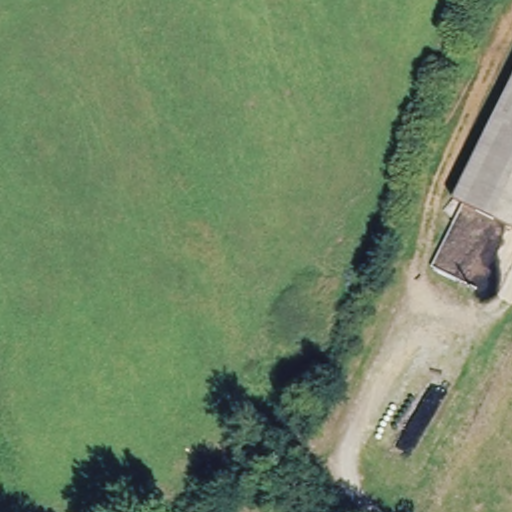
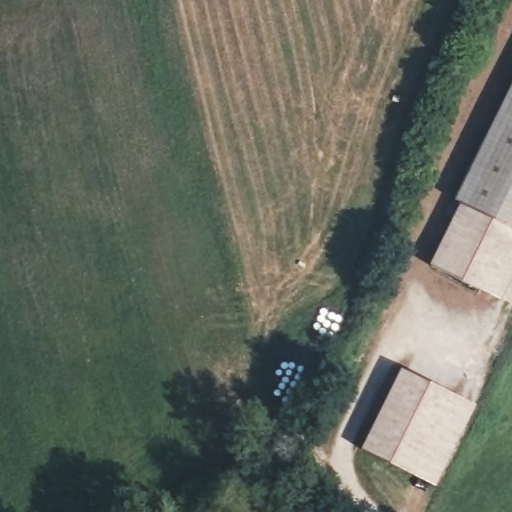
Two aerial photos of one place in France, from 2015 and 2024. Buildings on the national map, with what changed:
unchanged [(512,102),(512,226),(464,206),(512,102)]
new [(512,226),(512,273),(500,299),(428,264),(457,203),(464,206),(512,226)]
new [(474,404),(434,484),(361,448),(399,368),(474,404)]

